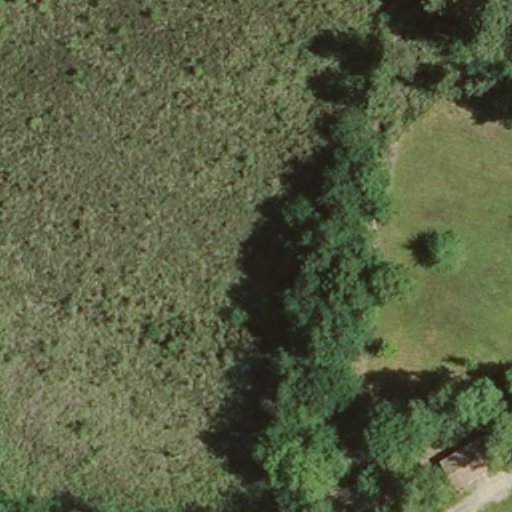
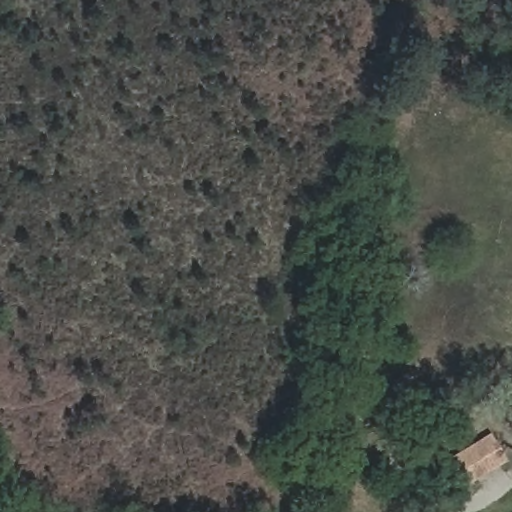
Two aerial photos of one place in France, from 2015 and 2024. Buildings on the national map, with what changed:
new [(506,462),(463,488),(447,460),(488,435),(506,462)]

